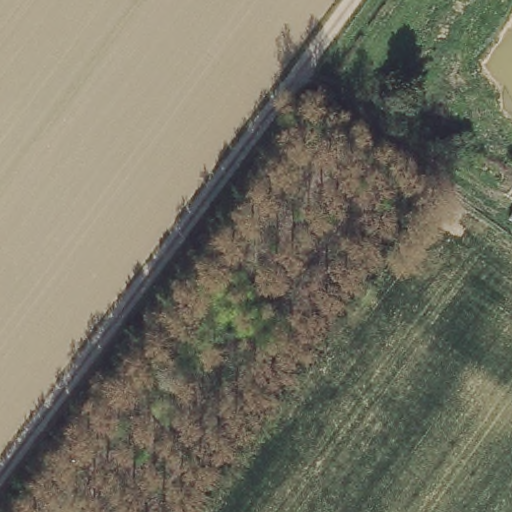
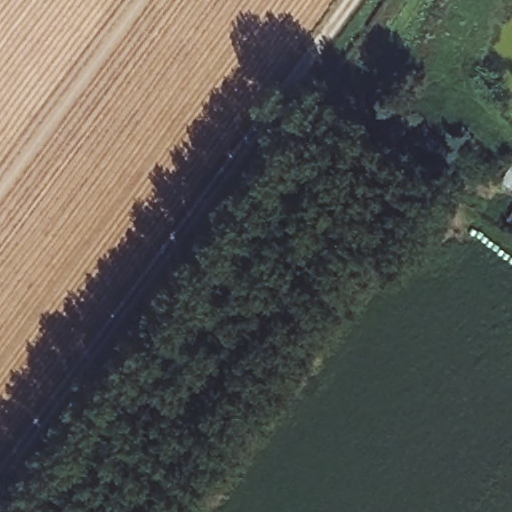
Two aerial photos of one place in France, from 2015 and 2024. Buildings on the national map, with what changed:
unchanged [(510,219),(512,215),(512,221),(510,219)]

